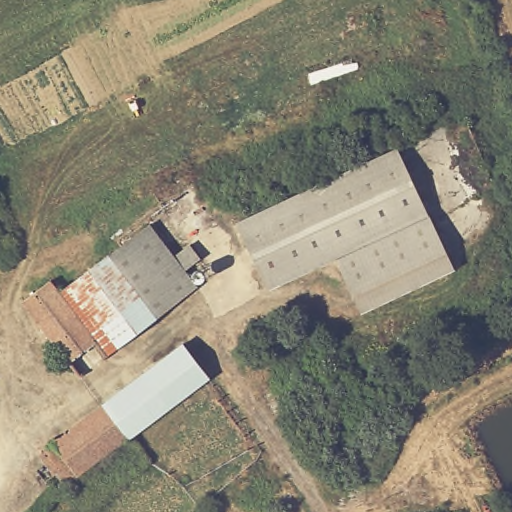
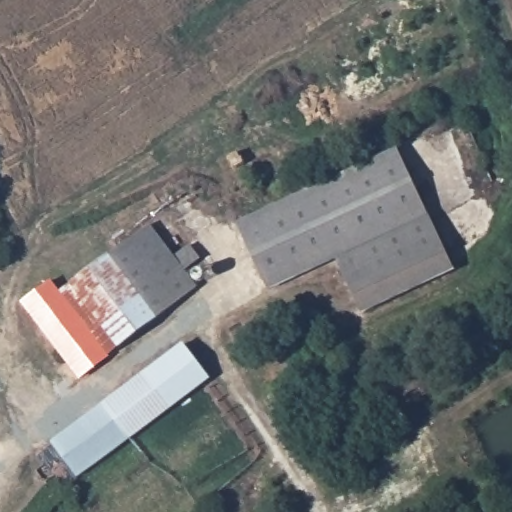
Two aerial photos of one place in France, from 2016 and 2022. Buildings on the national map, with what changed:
unchanged [(270,285),(237,217),(398,144),(428,210),(337,253),(270,285)]
unchanged [(354,290),(337,253),(428,210),(445,245),(354,290)]
unchanged [(186,277),(199,293),(107,360),(60,298),(149,230),(176,264),(187,255),(194,270),(186,277)]
unchanged [(456,269),(365,311),(354,290),(445,245),(456,269)]
unchanged [(60,298),(107,360),(80,381),(22,307),(33,296),(50,286),(60,298)]
unchanged [(185,343),(210,375),(169,408),(142,375),(185,343)]
unchanged [(99,405),(142,375),(169,408),(129,438),(99,405)]
unchanged [(129,438),(64,486),(40,455),(99,405),(129,438)]

